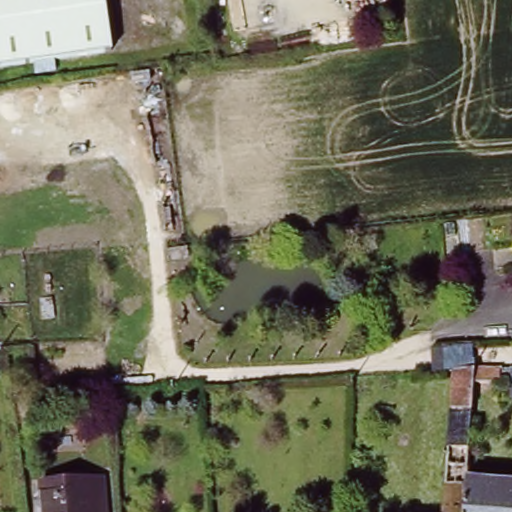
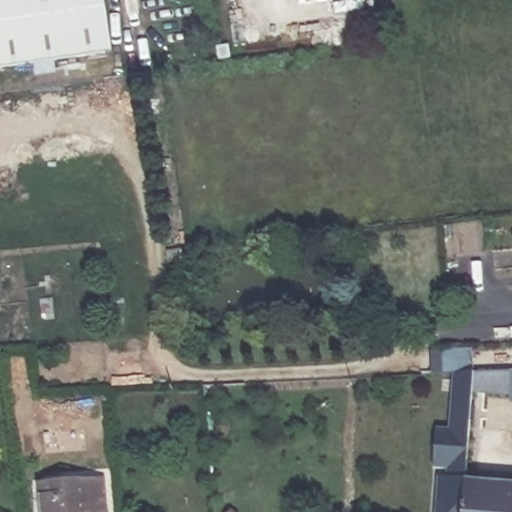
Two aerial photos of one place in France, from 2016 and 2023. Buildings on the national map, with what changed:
unchanged [(110,37),(0,57),(0,0),(104,0),(110,37)]
unchanged [(450,407),(452,374),(460,373),(473,373),(510,371),(510,385),(472,383),(466,481),(464,512),(445,512),(447,472),(450,407)]
unchanged [(512,485),(512,512),(464,512),(466,481),(512,485)]
unchanged [(103,483),(106,512),(43,512),(41,487),(103,483)]

